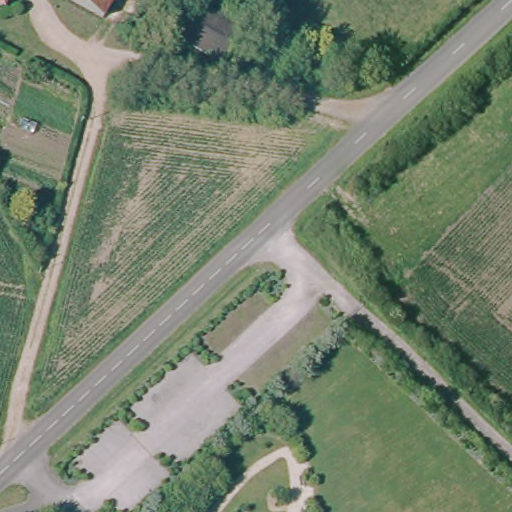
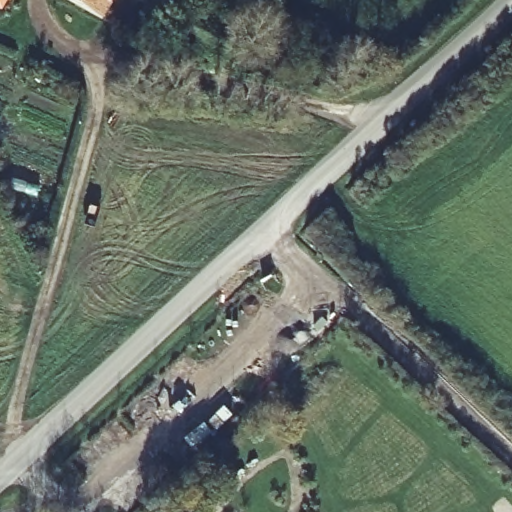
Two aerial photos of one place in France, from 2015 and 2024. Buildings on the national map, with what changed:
unchanged [(0,9),(0,0),(5,0),(0,9)]
unchanged [(99,18),(66,0),(109,0),(99,18)]
unchanged [(247,0),(264,0),(260,7),(247,0)]
unchanged [(192,7),(210,17),(216,7),(240,22),(217,63),(174,40),(192,7)]

